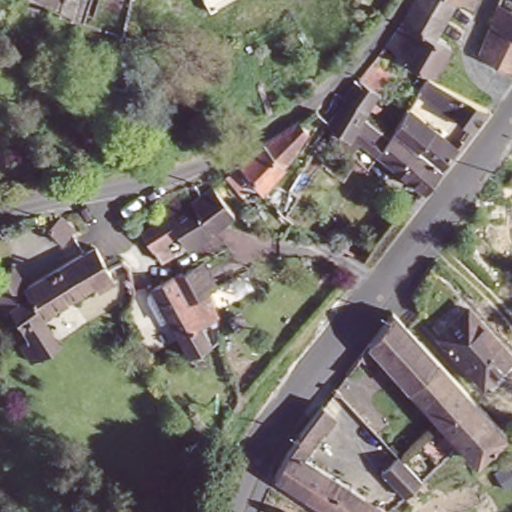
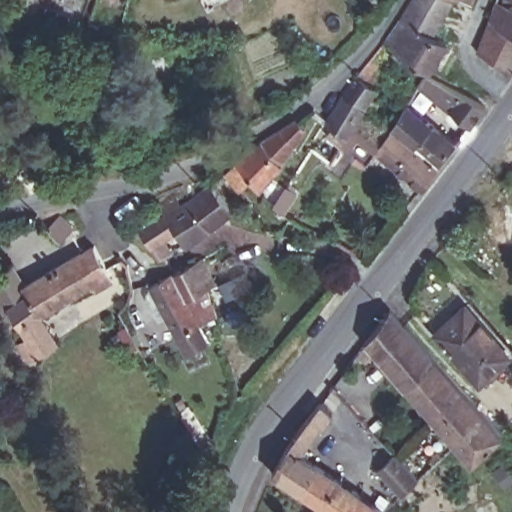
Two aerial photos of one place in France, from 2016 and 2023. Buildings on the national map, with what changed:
unchanged [(405,15),(415,0),(457,0),(438,32),(405,15)]
unchanged [(466,0),(480,0),(477,6),(466,0)]
unchanged [(495,5),(512,10),(512,35),(487,24),(495,5)]
unchanged [(454,39),(435,68),(405,53),(407,50),(388,39),(405,15),(438,32),(454,39)]
unchanged [(371,54),(386,68),(374,84),(376,86),(371,96),(380,103),(376,109),(367,103),(364,107),(342,91),(371,54)]
unchanged [(471,94),(490,104),(474,126),(425,85),(432,74),(471,94)]
unchanged [(332,124),(325,116),(327,114),(342,91),(364,107),(360,114),(342,141),(328,130),(332,124)]
unchanged [(413,109),(455,144),(440,164),(393,126),(410,99),(417,104),(413,109)]
unchanged [(440,164),(422,186),(410,177),(407,180),(390,166),(393,162),(380,151),(365,172),(352,164),(342,178),(331,172),(330,161),(342,141),(360,114),(389,133),(393,126),(440,164)]
unchanged [(302,139),(294,153),(295,154),(292,159),(282,174),(272,187),(260,200),(237,172),(264,149),(297,129),(302,139)]
unchanged [(226,214),(180,247),(169,232),(157,240),(165,254),(152,260),(134,232),(205,184),(226,214)]
unchanged [(72,228),(62,238),(49,224),(59,214),(72,228)]
unchanged [(30,338),(24,328),(12,309),(4,313),(0,307),(0,277),(13,269),(25,289),(95,248),(112,277),(43,316),(60,344),(40,356),(30,361),(20,344),(30,338)]
unchanged [(150,289),(152,287),(172,273),(192,263),(211,289),(204,293),(197,296),(205,310),(194,316),(200,327),(209,344),(187,356),(177,339),(150,289)]
unchanged [(511,353),(482,380),(437,333),(467,305),(511,353)]
unchanged [(477,461),(460,443),(375,354),(368,364),(356,356),(390,312),(505,432),(477,461)]
unchanged [(388,512),(336,512),(277,475),(289,452),(312,419),(325,403),(340,414),(327,431),(325,429),(307,455),(370,496),(390,509),(388,512)]
unchanged [(405,487),(381,464),(397,448),(422,472),(405,487)]

